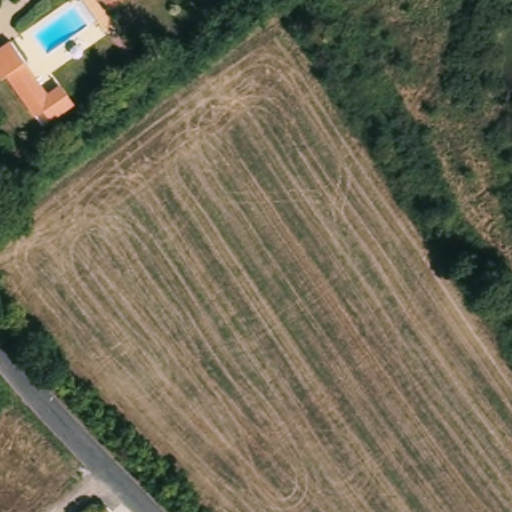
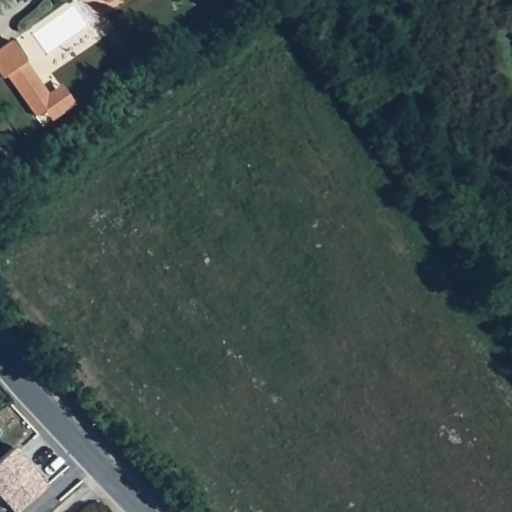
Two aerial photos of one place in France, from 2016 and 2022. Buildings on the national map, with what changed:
unchanged [(102,0),(113,0),(105,5),(102,0)]
unchanged [(47,106),(37,113),(8,72),(5,74),(0,66),(0,48),(14,38),(28,58),(24,61),(45,93),(61,82),(75,101),(54,116),(47,106)]
new [(0,458),(13,447),(29,465),(44,485),(14,512),(0,495),(0,458)]

